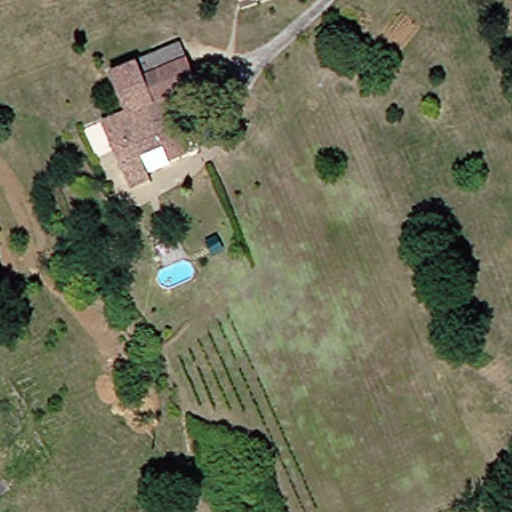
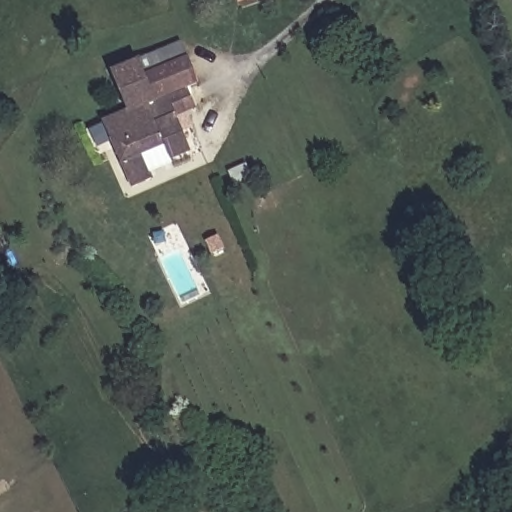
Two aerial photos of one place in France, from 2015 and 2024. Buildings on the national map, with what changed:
unchanged [(126,112),(110,74),(181,46),(198,88),(205,104),(185,114),(192,130),(181,135),(188,154),(170,161),(171,164),(146,174),(149,181),(130,189),(102,121),(126,112)]

